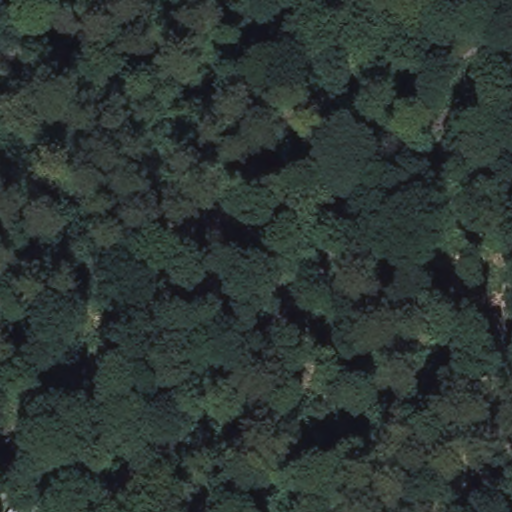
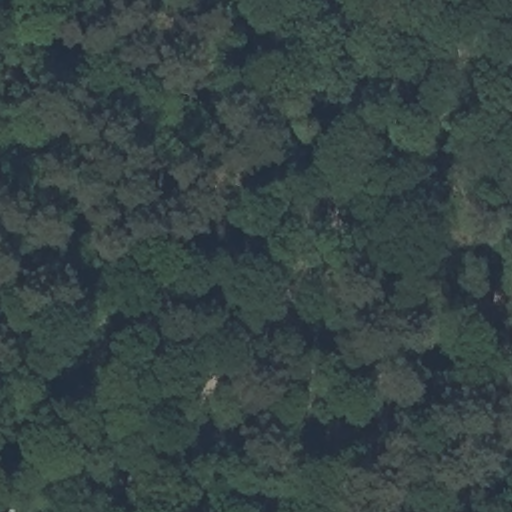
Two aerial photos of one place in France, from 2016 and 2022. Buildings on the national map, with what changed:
unchanged [(9,512),(18,498),(33,506),(29,512),(9,512)]

